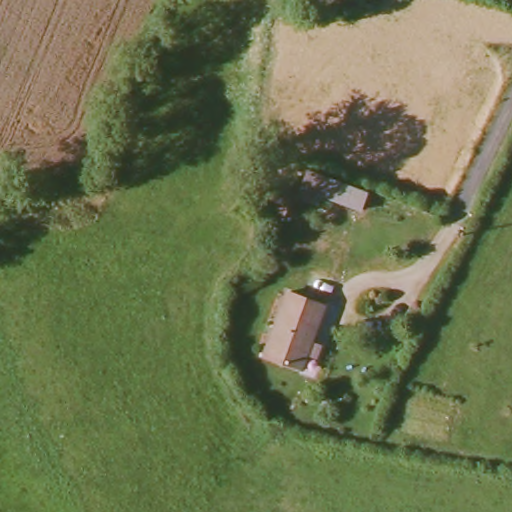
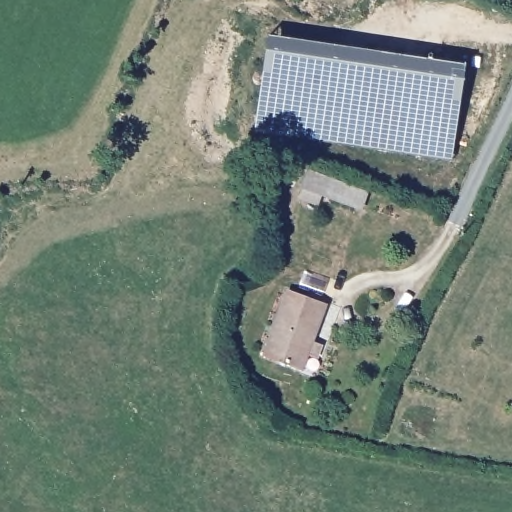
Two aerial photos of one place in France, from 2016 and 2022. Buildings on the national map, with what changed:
new [(449,163),(244,127),(262,27),(464,55),(449,163)]
unchanged [(367,200),(361,217),(296,191),(304,174),(367,200)]
unchanged [(322,359),(310,357),(305,373),(265,363),(285,297),(325,307),(314,344),(324,347),(322,359)]

